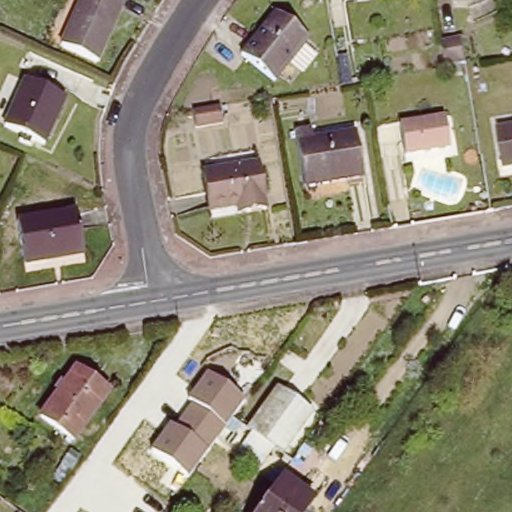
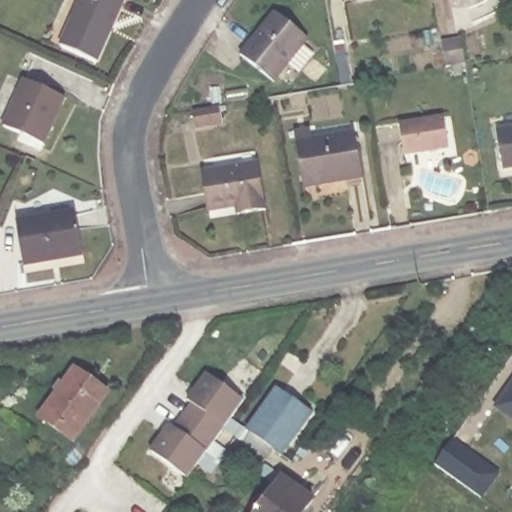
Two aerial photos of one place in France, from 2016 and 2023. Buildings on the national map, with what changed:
unchanged [(62,46),(83,0),(126,0),(98,62),(62,46)]
unchanged [(242,53),(275,11),(308,37),(276,79),(242,53)]
unchanged [(457,45),(477,41),(481,67),(479,67),(461,70),(457,45)]
unchanged [(67,99),(47,146),(6,129),(26,82),(67,99)]
unchanged [(236,124),(210,128),(207,111),(233,107),(236,124)]
unchanged [(408,150),(404,121),(447,114),(452,143),(408,150)]
unchanged [(500,134),(512,132),(512,171),(506,172),(500,134)]
unchanged [(306,188),(297,136),(313,133),(315,147),(342,142),(342,138),(357,136),(365,178),(306,188)]
unchanged [(238,202),(210,205),(205,169),(260,162),(266,207),(247,209),(239,210),(238,202)]
unchanged [(46,260),(46,263),(26,267),(17,224),(76,212),(85,252),(46,260)]
unchanged [(73,366),(110,392),(75,442),(38,416),(73,366)]
unchanged [(150,450),(169,423),(172,425),(190,402),(187,399),(205,373),(243,399),(186,477),(150,450)]
unchanged [(243,439),(251,428),(248,426),(280,384),(315,410),(285,453),(275,446),(267,457),(243,439)]
new [(512,416),(500,408),(512,390),(512,416)]
new [(480,494),(466,486),(436,465),(453,441),(483,461),(496,470),(480,494)]
unchanged [(310,512),(260,512),(283,481),(315,505),(310,512)]
demolished [(47,512),(40,512),(42,509),(47,512)]

